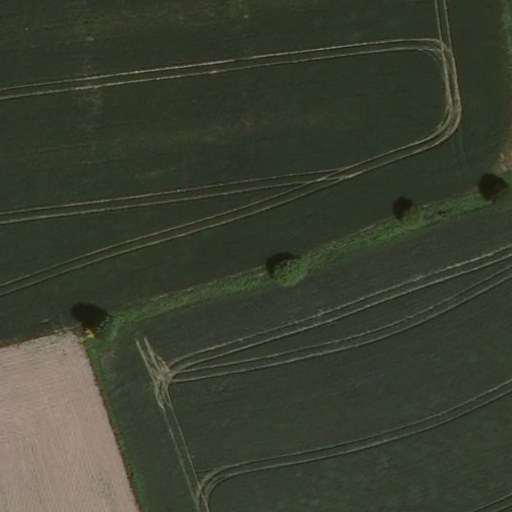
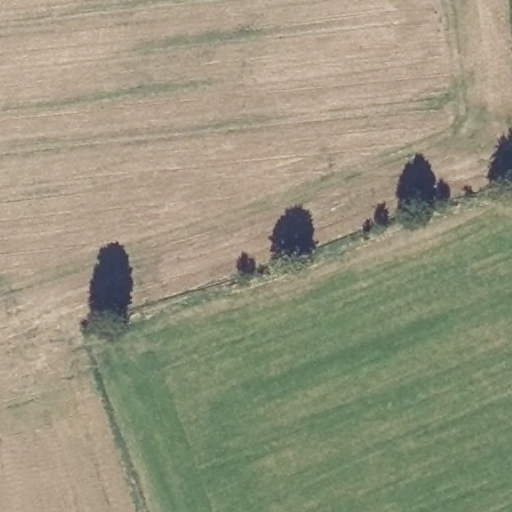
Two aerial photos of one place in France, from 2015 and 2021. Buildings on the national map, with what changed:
[]

